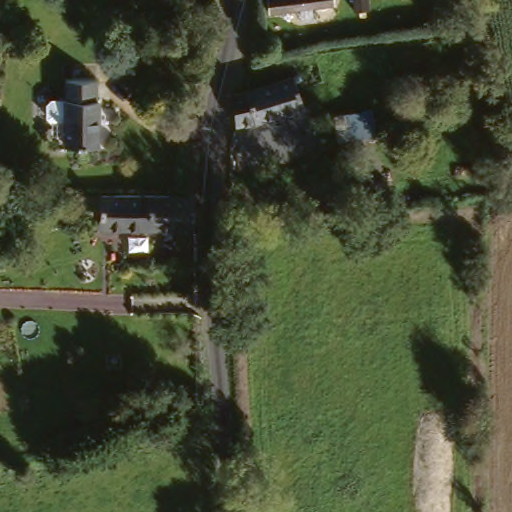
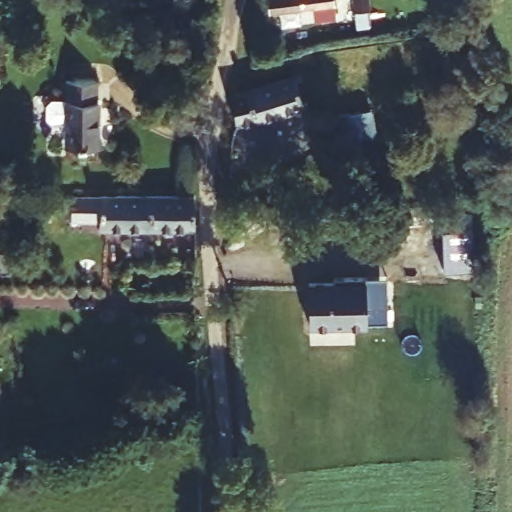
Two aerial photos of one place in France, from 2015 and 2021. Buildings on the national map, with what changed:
unchanged [(313,7),(315,20),(298,23),(296,11),(267,16),(263,0),(331,0),(332,4),(313,7)]
unchanged [(351,13),(350,0),(371,0),(372,12),(351,13)]
unchanged [(301,74),(306,103),(233,123),(231,97),(248,91),(301,74)]
unchanged [(100,146),(66,148),(61,82),(94,81),(100,146)]
unchanged [(96,196),(184,196),(189,197),(191,230),(95,230),(95,222),(67,221),(68,197),(96,196)]
new [(388,322),(367,322),(367,326),(308,327),(309,281),(334,281),(334,278),(386,277),(388,322)]

